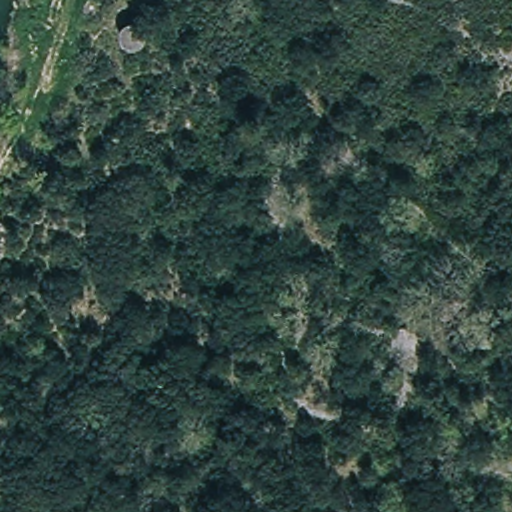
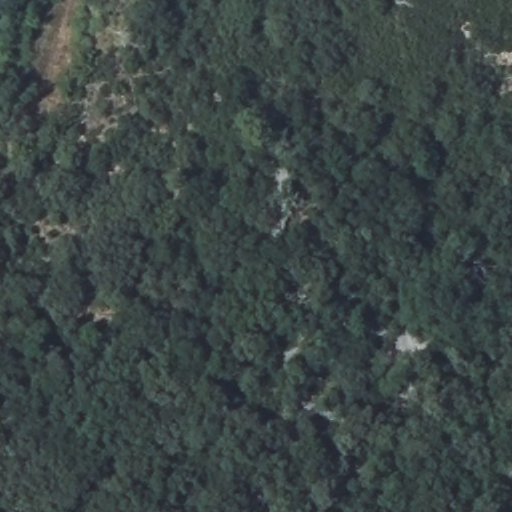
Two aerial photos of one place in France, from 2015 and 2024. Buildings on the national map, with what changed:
unchanged [(127,20),(130,0),(145,0),(150,0),(146,24),(127,20)]

